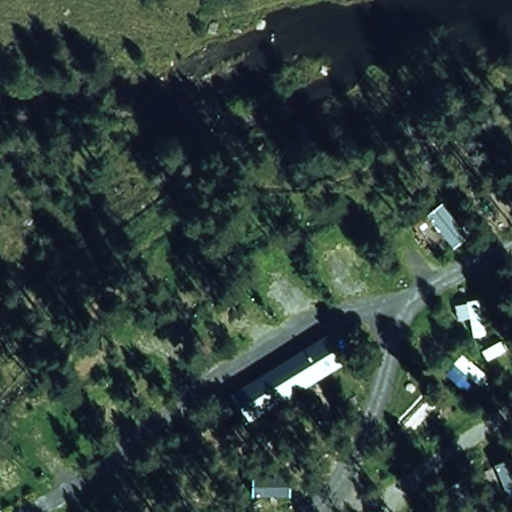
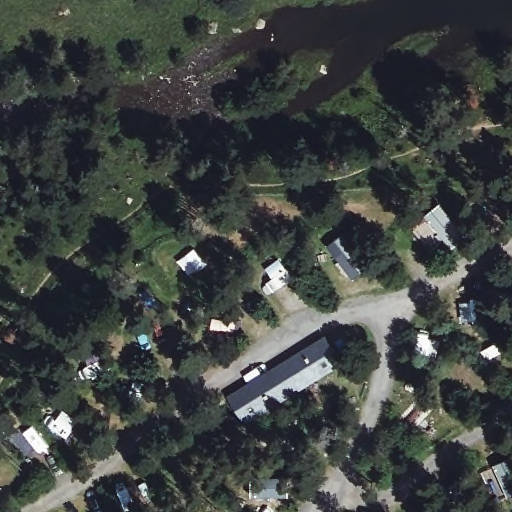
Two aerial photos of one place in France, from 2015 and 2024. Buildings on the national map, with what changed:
unchanged [(321,337),(338,365),(238,427),(221,393),(321,337)]

